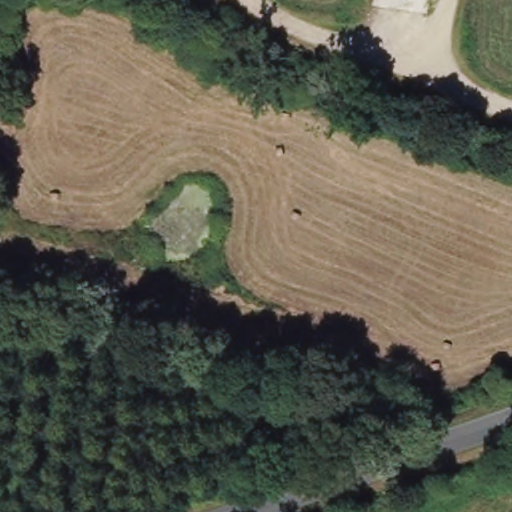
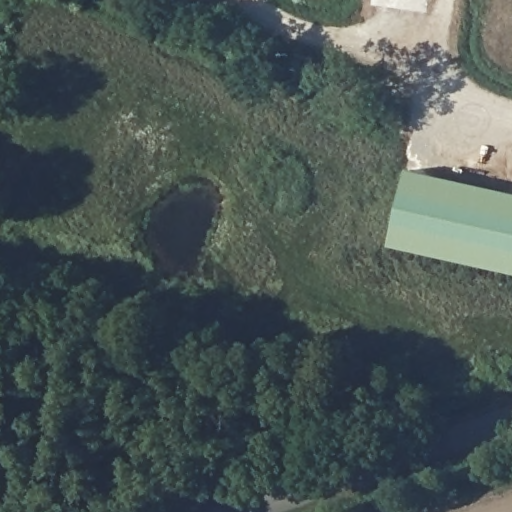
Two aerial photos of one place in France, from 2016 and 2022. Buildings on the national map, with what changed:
new [(512,193),(512,272),(391,245),(408,169),(512,193)]

